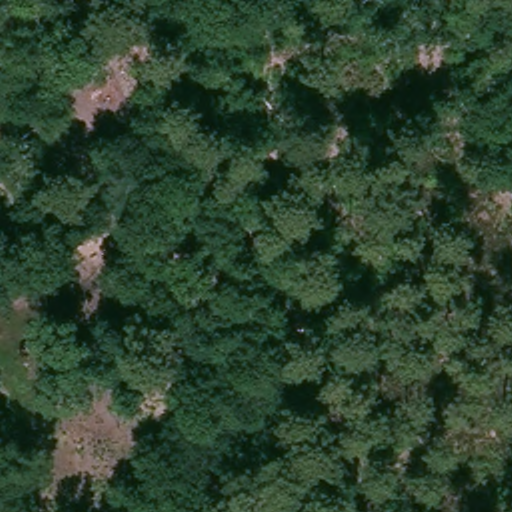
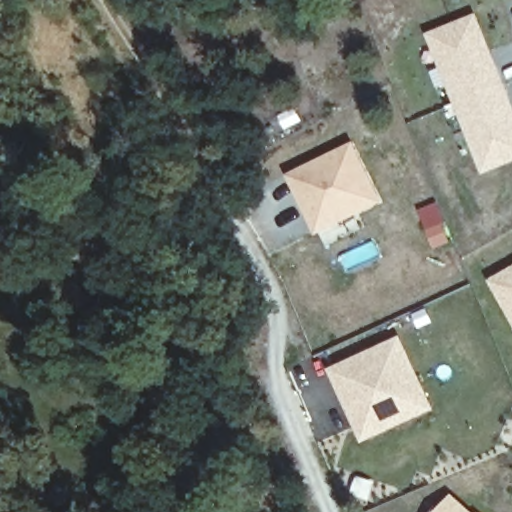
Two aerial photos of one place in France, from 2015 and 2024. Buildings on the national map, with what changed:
new [(427,35),(477,15),(512,101),(512,163),(483,174),(427,35)]
new [(315,235),(287,175),(354,143),(382,203),(315,235)]
new [(490,281),(512,269),(512,318),(490,281)]
new [(331,370),(397,339),(430,406),(362,437),(331,370)]
new [(451,493),(473,512),(433,512),(451,493)]

